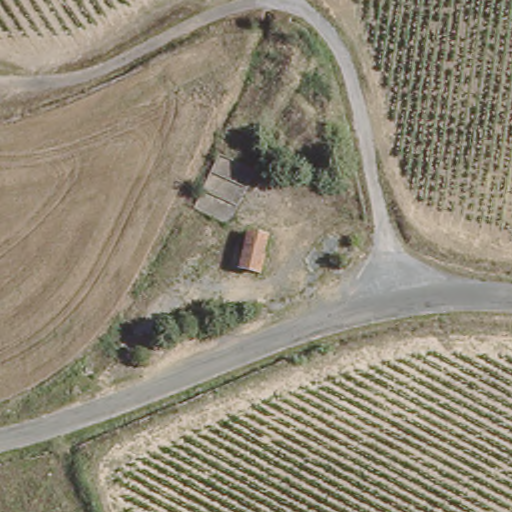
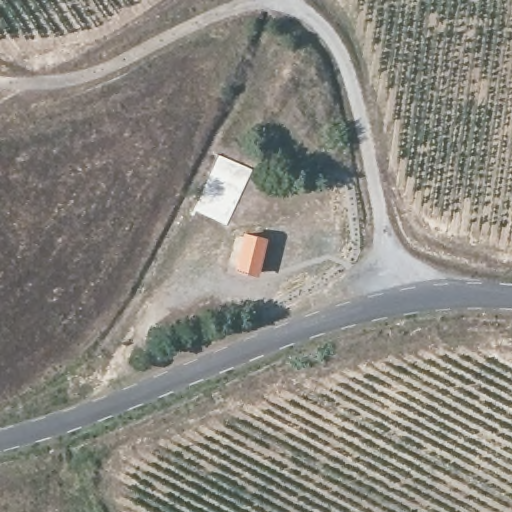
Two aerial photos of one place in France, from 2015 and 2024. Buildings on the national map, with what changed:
unchanged [(245,239),(266,240),(265,264),(244,261),(245,239)]

